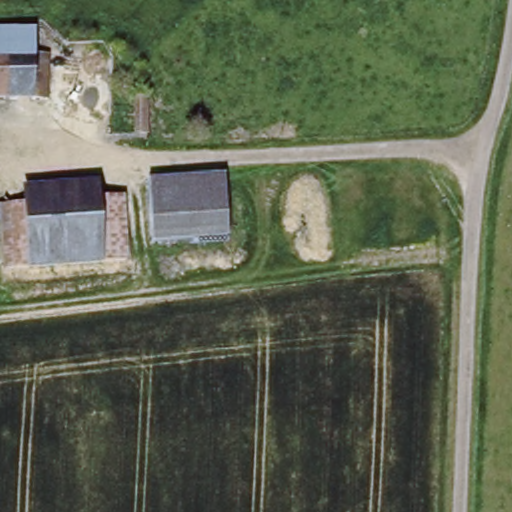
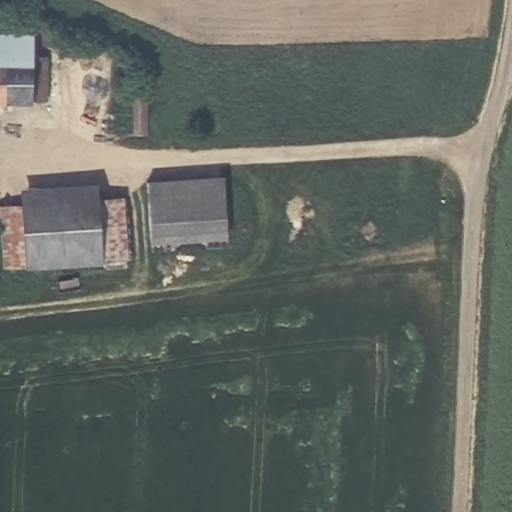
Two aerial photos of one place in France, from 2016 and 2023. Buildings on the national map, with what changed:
unchanged [(35,51),(44,51),(45,73),(51,73),(51,97),(0,97),(0,31),(35,32),(35,51)]
unchanged [(149,95),(150,129),(138,130),(137,95),(149,95)]
unchanged [(226,178),(229,237),(151,241),(148,183),(226,178)]
unchanged [(24,188),(99,185),(100,202),(103,262),(28,267),(25,205),(24,188)]
unchanged [(124,201),(126,261),(103,262),(100,202),(124,201)]
unchanged [(25,205),(28,267),(5,268),(1,206),(25,205)]

